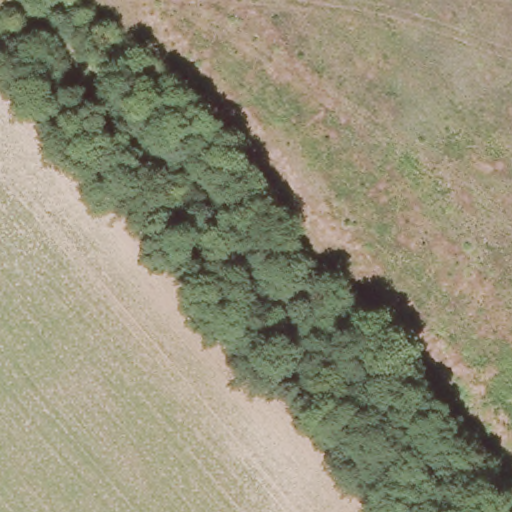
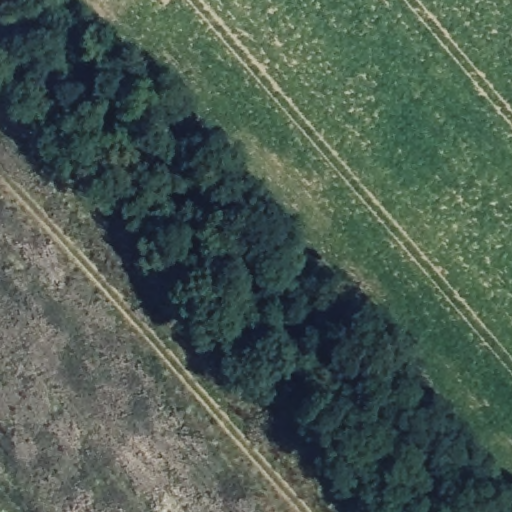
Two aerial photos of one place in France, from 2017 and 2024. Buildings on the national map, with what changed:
unchanged [(95,86),(80,96),(67,79),(79,67),(95,86)]

